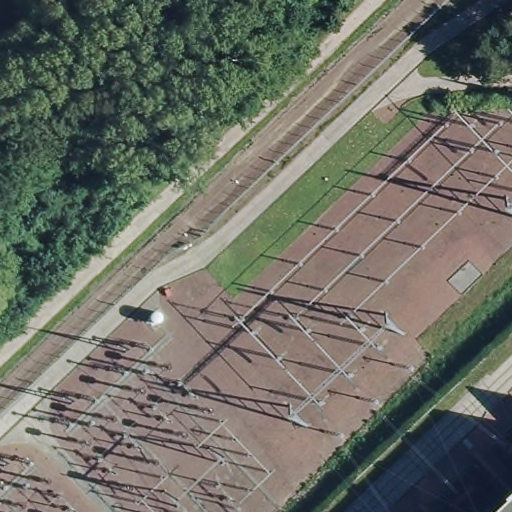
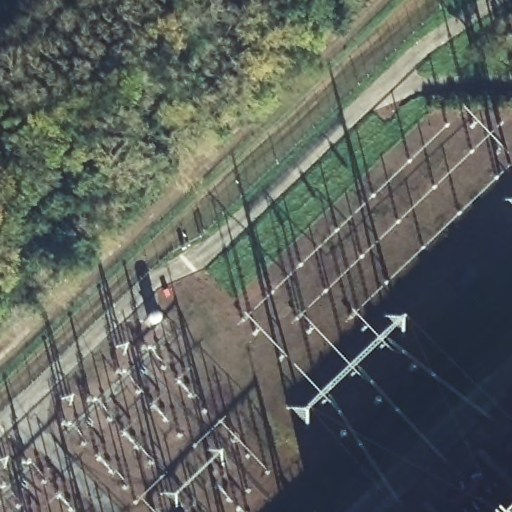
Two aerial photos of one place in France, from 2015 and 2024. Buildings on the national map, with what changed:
unchanged [(512,501),(512,512),(500,512),(512,501)]

